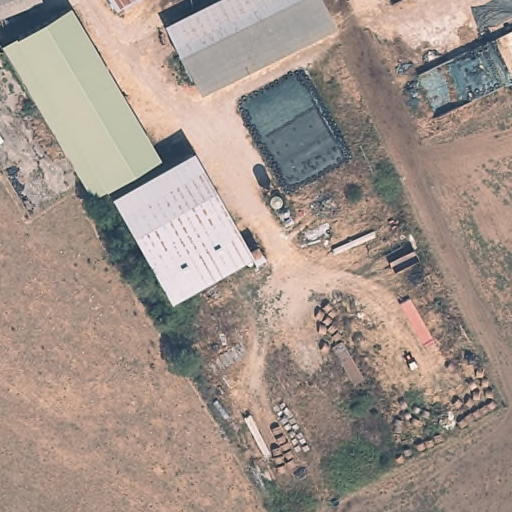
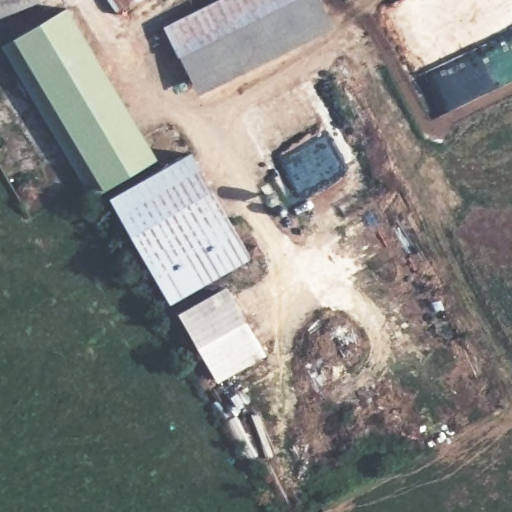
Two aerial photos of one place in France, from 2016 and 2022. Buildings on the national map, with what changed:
unchanged [(0,0),(41,0),(42,2),(0,22),(0,0)]
unchanged [(119,0),(136,0),(124,7),(119,0)]
unchanged [(202,95),(172,32),(238,0),(321,0),(336,31),(202,95)]
unchanged [(6,47),(68,12),(158,167),(91,206),(1,51),(0,50),(6,47)]
unchanged [(172,304),(113,200),(194,155),(253,258),(172,304)]
new [(229,286),(267,355),(218,383),(177,313),(229,286)]

